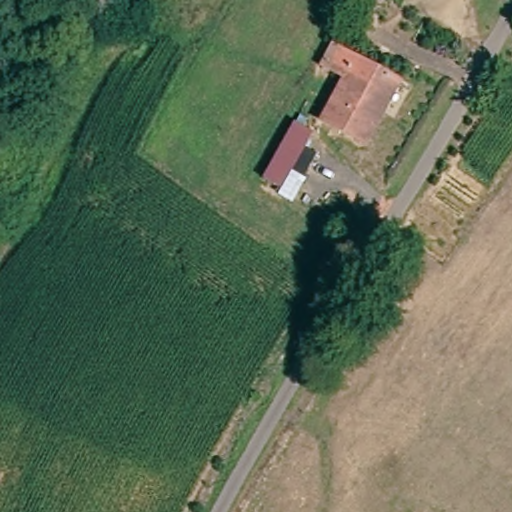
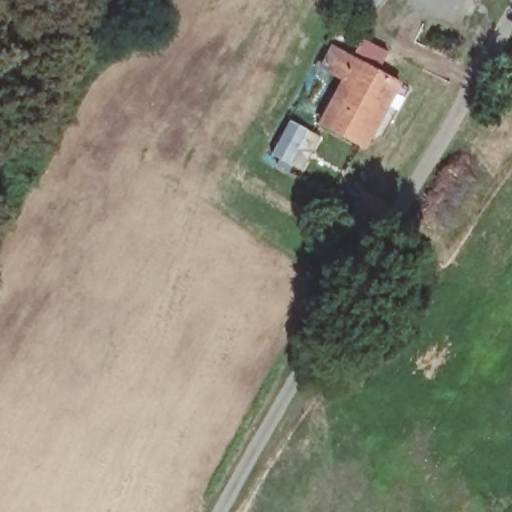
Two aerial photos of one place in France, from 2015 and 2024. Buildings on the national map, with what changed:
unchanged [(404,2),(400,0),(406,0),(404,2)]
unchanged [(335,48),(403,89),(370,150),(327,125),(350,82),(322,67),(335,48)]

